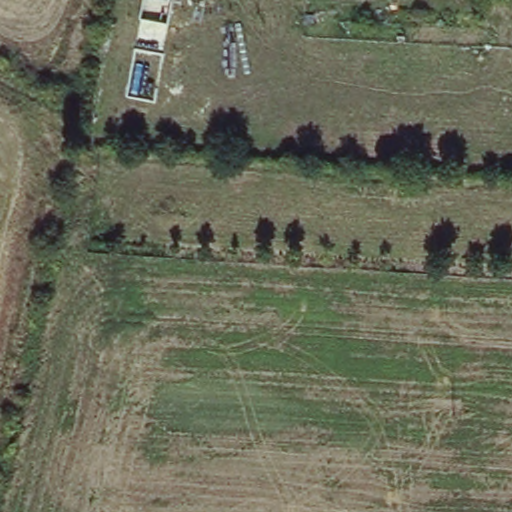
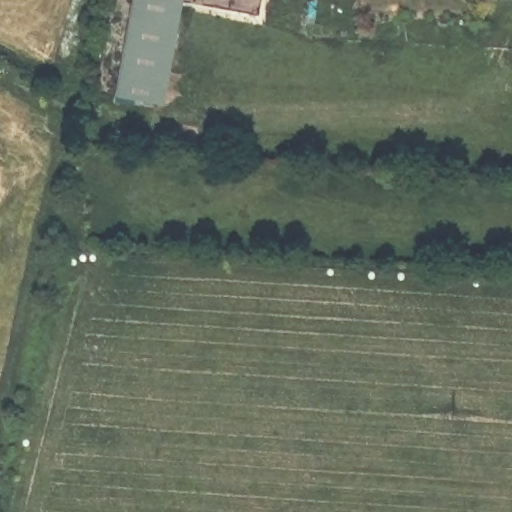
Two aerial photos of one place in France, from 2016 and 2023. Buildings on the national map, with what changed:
new [(165,106),(117,100),(132,0),(184,0),(165,106)]

